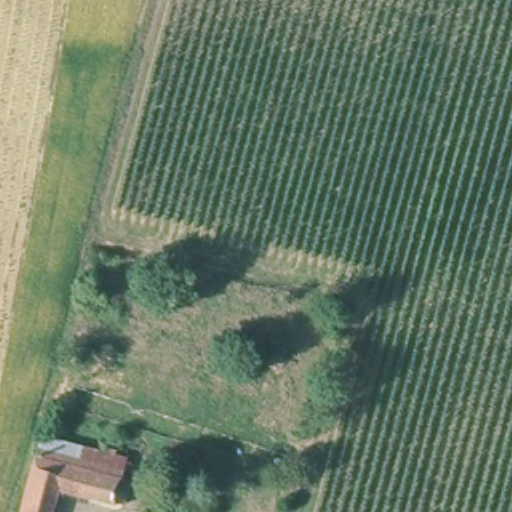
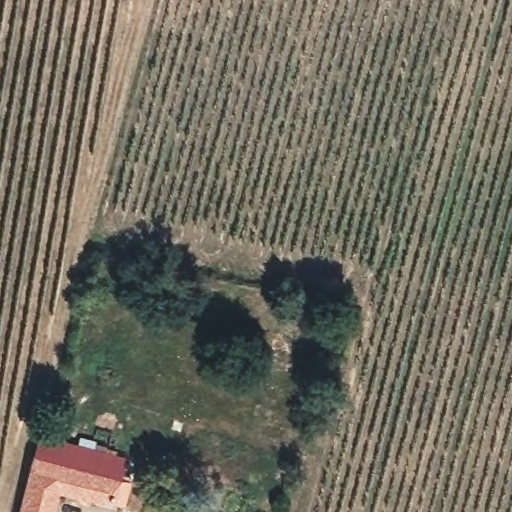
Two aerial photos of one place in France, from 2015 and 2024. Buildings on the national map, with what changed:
unchanged [(21,506),(42,436),(73,443),(65,466),(120,478),(112,505),(59,492),(54,511),(53,512),(19,512),(21,506)]
unchanged [(65,466),(73,443),(128,456),(120,478),(65,466)]

